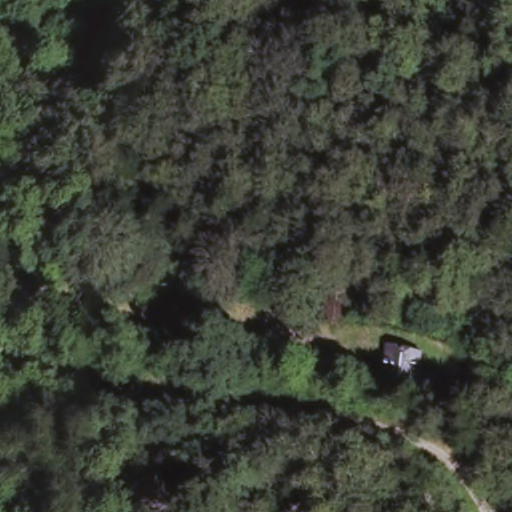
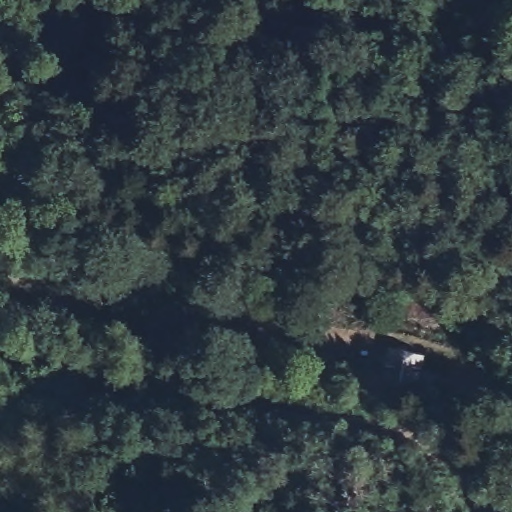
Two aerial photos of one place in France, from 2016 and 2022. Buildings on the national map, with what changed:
unchanged [(432,360),(425,387),(417,417),(373,404),(384,353),(432,360)]

